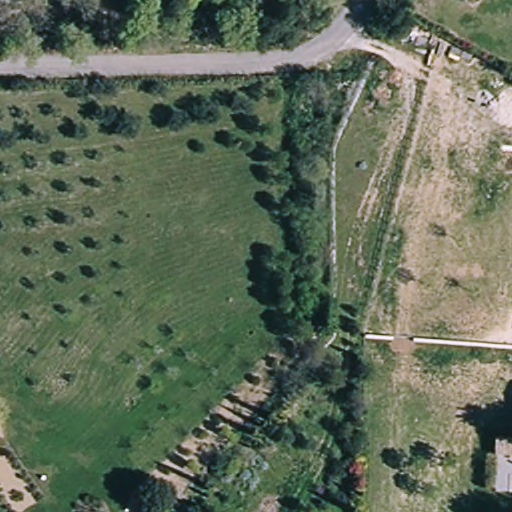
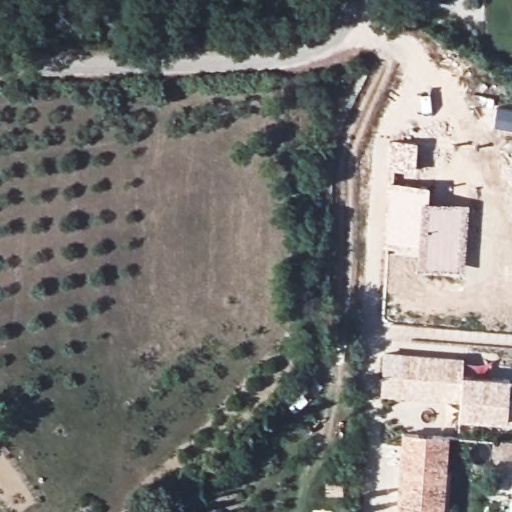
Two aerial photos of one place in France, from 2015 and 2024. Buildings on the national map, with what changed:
new [(465,270),(417,267),(418,247),(384,244),(390,182),(430,184),(428,200),(469,204),(465,270)]
new [(510,378),(508,399),(512,399),(512,422),(507,422),(458,418),(460,402),(381,396),(383,352),(464,358),(462,374),(510,378)]
new [(444,512),(397,512),(403,432),(450,437),(444,512)]
new [(512,458),(492,457),(493,439),(512,440),(512,458)]

